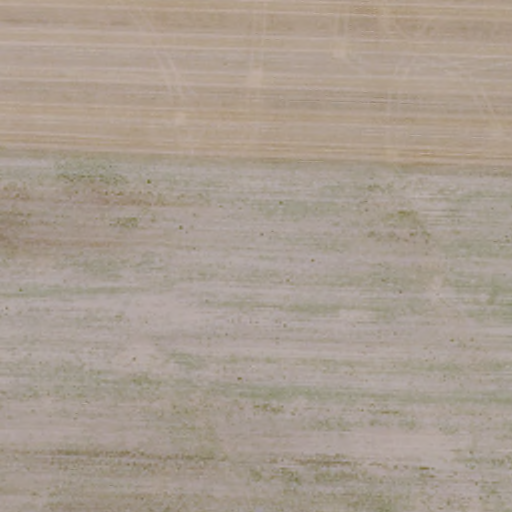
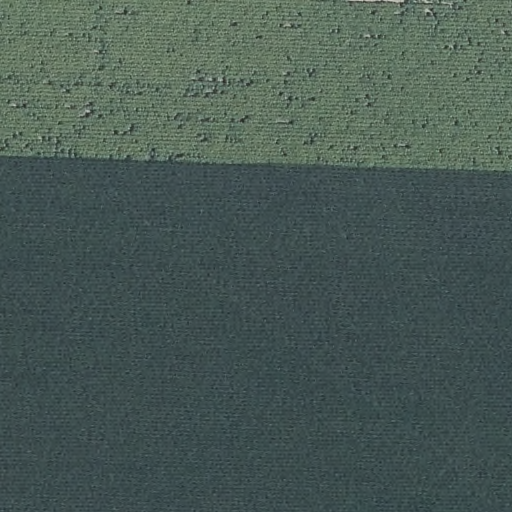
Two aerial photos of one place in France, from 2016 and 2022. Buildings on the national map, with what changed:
[]

